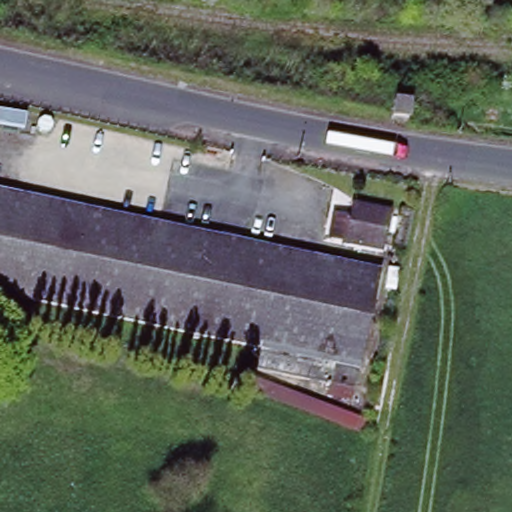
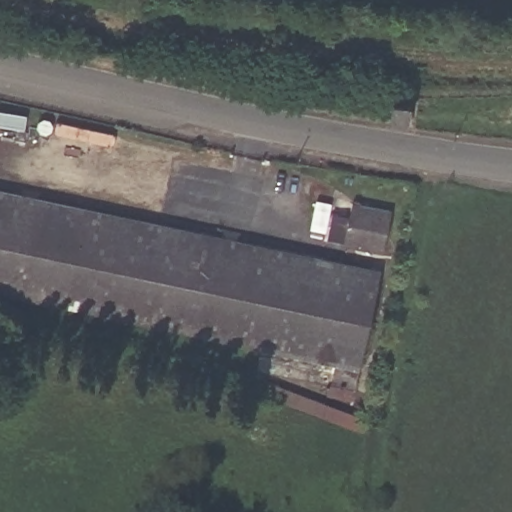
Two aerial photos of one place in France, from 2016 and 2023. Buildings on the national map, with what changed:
unchanged [(329,394),(335,360),(0,288),(0,185),(384,273),(352,399),(329,394)]
unchanged [(387,208),(378,245),(347,238),(357,202),(387,208)]
unchanged [(255,376),(351,414),(342,429),(244,395),(255,376)]

